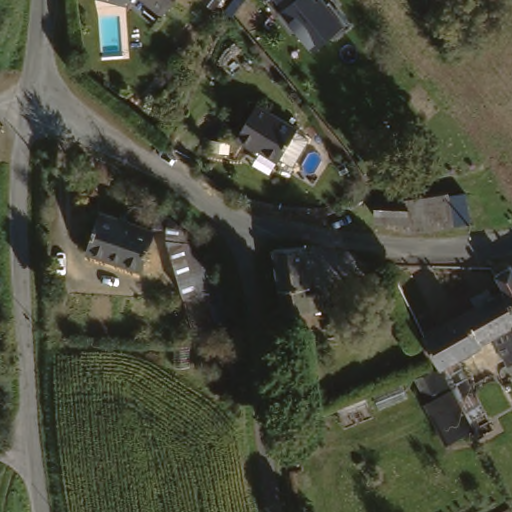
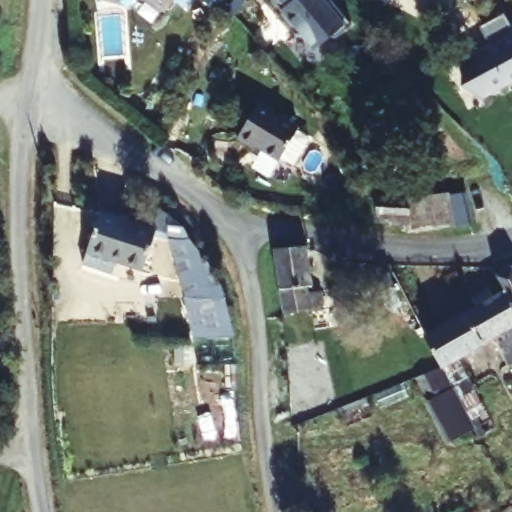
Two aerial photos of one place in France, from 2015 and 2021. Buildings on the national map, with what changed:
unchanged [(160,15),(141,0),(172,0),(160,15)]
unchanged [(347,25),(312,52),(264,0),(324,0),(347,25)]
new [(381,0),(388,0),(386,4),(381,0)]
new [(471,56),(492,44),(481,24),(505,10),(512,23),(512,78),(490,90),(479,90),(465,82),(465,65),(471,56)]
unchanged [(287,158),(274,151),(272,155),(247,144),(245,146),(228,139),(245,102),(287,122),(285,125),(299,132),(287,158)]
unchanged [(439,196),(457,195),(459,224),(443,225),(399,230),(398,219),(389,219),(388,226),(370,225),(370,217),(369,195),(395,194),(396,195),(438,191),(439,196)]
unchanged [(153,226),(139,271),(86,251),(99,209),(153,226)]
unchanged [(166,229),(198,220),(218,290),(184,298),(166,229)]
unchanged [(309,288),(303,290),(304,297),(314,297),(315,312),(277,317),(272,252),(305,250),(309,288)]
unchanged [(499,292),(497,290),(502,287),(494,273),(510,265),(512,269),(512,316),(499,292)]
unchanged [(468,294),(486,284),(491,293),(497,290),(499,292),(512,316),(512,341),(504,326),(476,342),(459,310),(472,303),(468,294)]
unchanged [(459,310),(476,342),(438,362),(422,331),(459,310)]
unchanged [(453,393),(470,430),(446,441),(414,375),(438,362),(442,371),(446,377),(453,393)]

